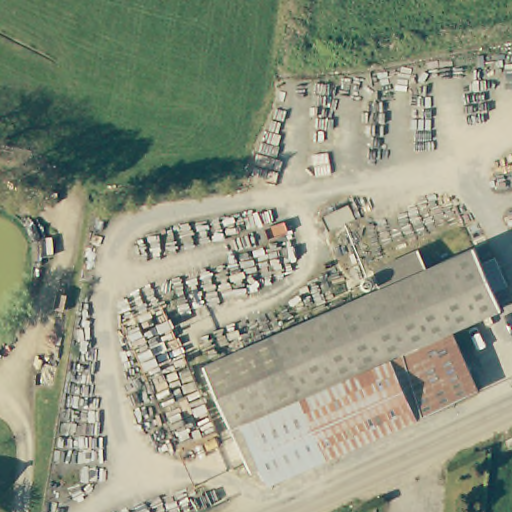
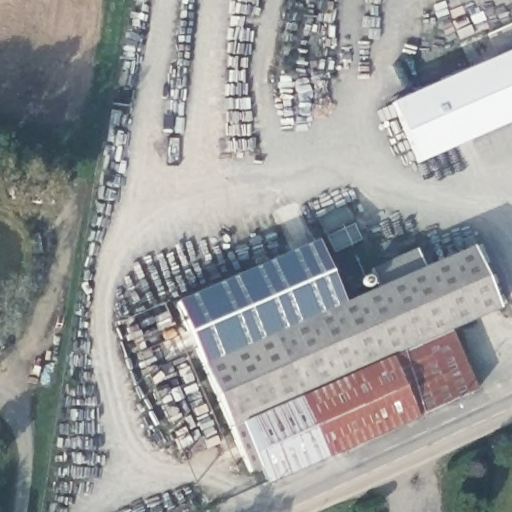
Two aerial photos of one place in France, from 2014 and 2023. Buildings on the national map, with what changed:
new [(512,50),(512,123),(417,164),(392,102),(512,50)]
new [(177,303),(316,241),(342,300),(320,310),(241,345),(202,362),(177,303)]
unchanged [(360,439),(268,480),(260,463),(249,468),(228,420),(202,362),(241,345),(320,310),(478,241),(506,303),(451,327),(450,327),(480,386),(360,439)]

